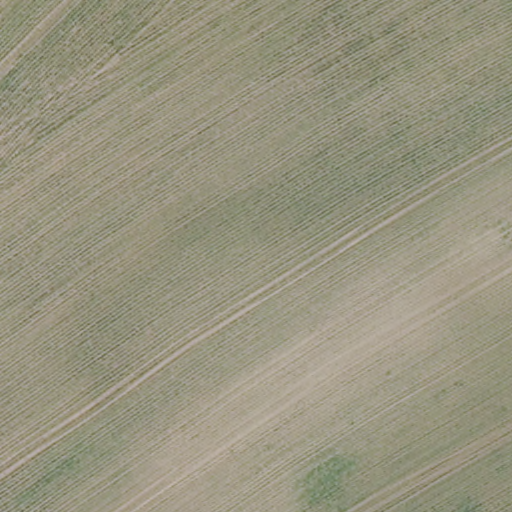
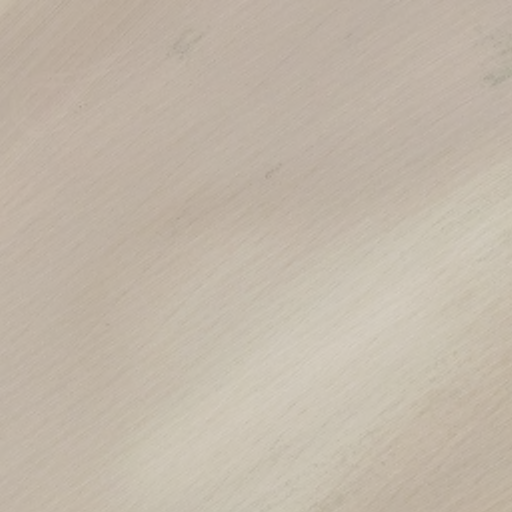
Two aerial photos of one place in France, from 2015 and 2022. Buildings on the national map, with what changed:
[]

